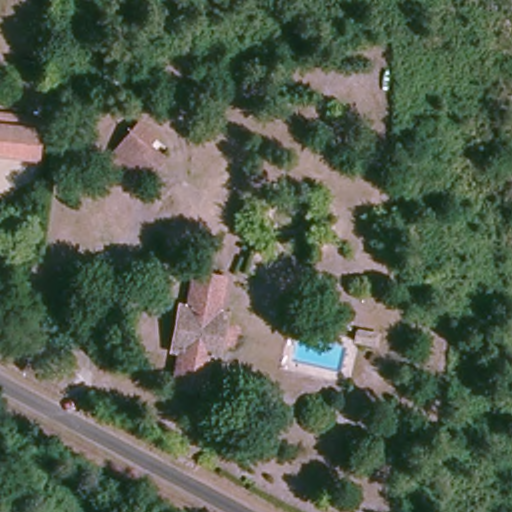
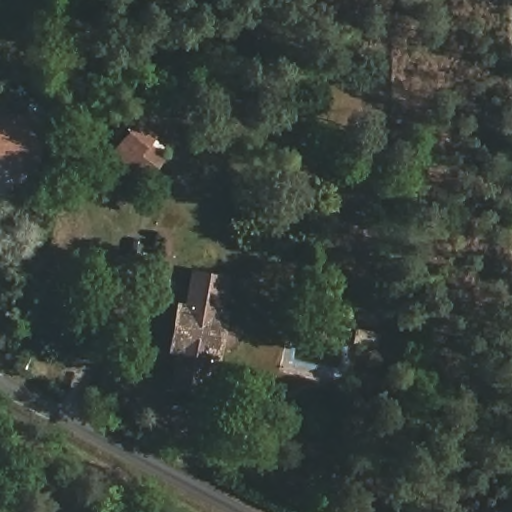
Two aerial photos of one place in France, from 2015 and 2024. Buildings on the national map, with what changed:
unchanged [(0,114),(44,118),(44,127),(43,152),(0,151),(0,114)]
unchanged [(107,160),(140,120),(159,136),(153,144),(169,158),(143,188),(107,160)]
unchanged [(227,321),(217,364),(206,361),(180,354),(170,351),(180,312),(193,306),(200,276),(227,284),(220,312),(219,319),(227,321)]
unchanged [(352,334),(349,349),(323,342),(330,329),(352,334)]
unchanged [(195,396),(170,390),(180,354),(206,361),(198,392),(195,396)]

